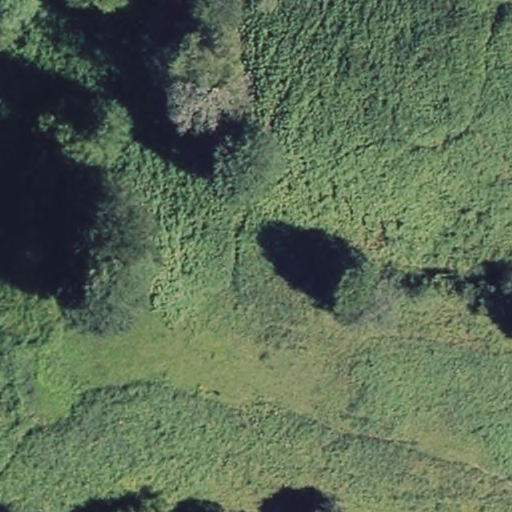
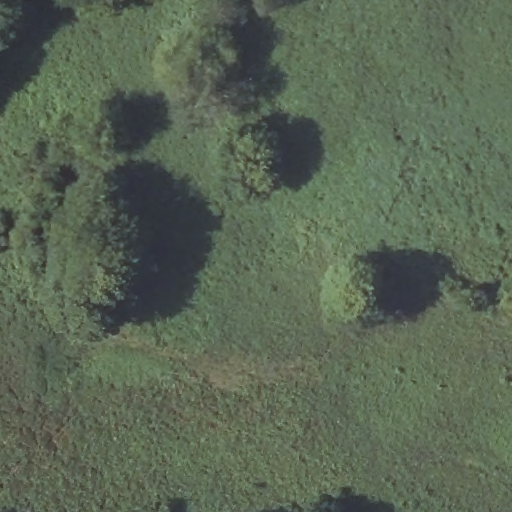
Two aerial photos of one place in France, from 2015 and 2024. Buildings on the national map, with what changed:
unchanged [(120,219),(120,251),(75,251),(74,218),(120,219)]

